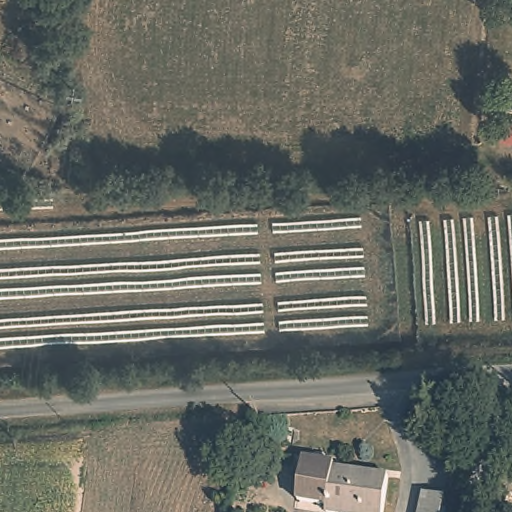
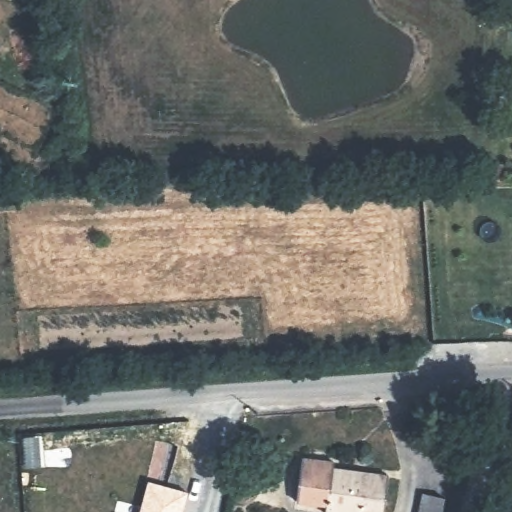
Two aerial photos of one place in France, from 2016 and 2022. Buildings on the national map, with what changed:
unchanged [(388,476),(383,512),(326,512),(326,505),(298,501),(302,460),(333,462),(332,470),(388,476)]
new [(187,491),(182,512),(140,512),(147,480),(187,491)]
unchanged [(445,499),(442,512),(420,512),(423,494),(445,499)]

